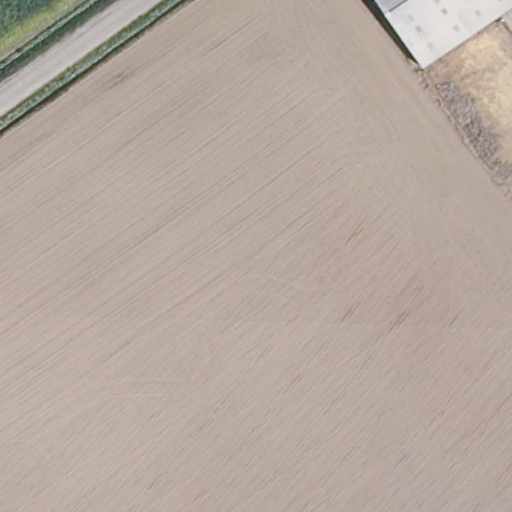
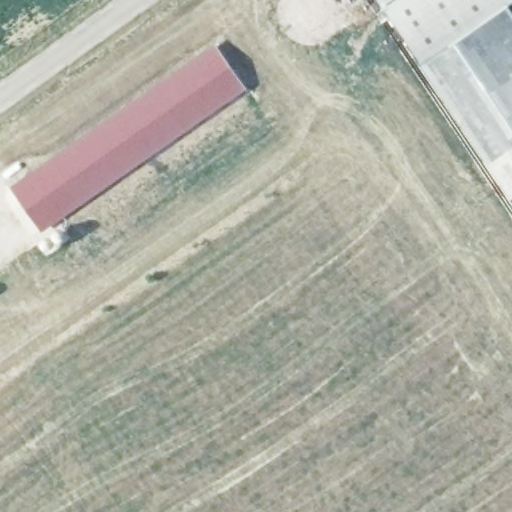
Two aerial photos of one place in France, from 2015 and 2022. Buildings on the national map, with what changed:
unchanged [(381,0),(512,0),(512,3),(424,64),(381,0)]
new [(512,150),(493,164),(426,65),(512,7),(512,150)]
new [(248,90),(41,231),(10,186),(215,44),(248,90)]

